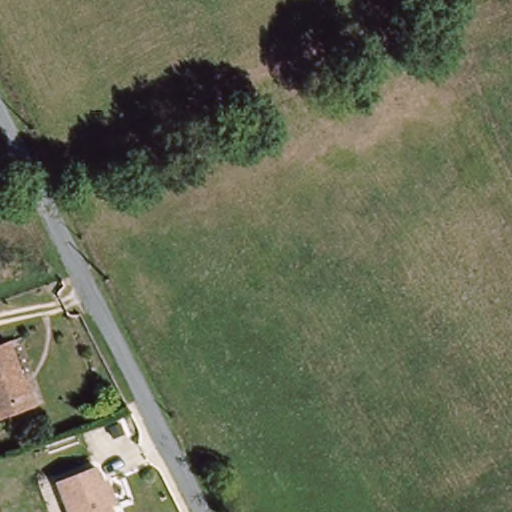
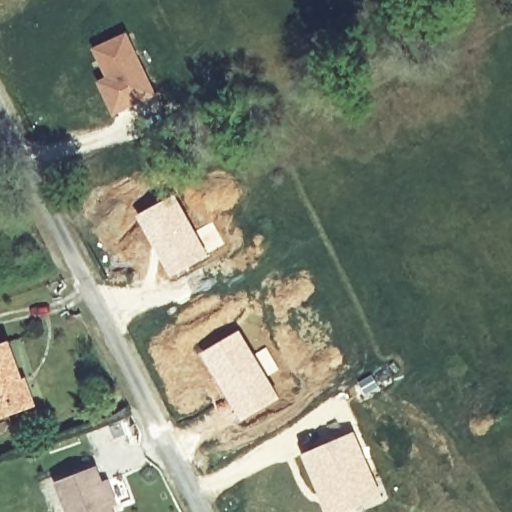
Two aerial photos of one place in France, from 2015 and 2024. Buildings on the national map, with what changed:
new [(128,31),(159,95),(112,118),(95,80),(104,76),(91,47),(128,31)]
new [(239,329),(254,353),(265,347),(279,370),(268,376),(280,397),(243,419),(201,352),(239,329)]
unchanged [(30,381),(34,379),(41,402),(0,415),(0,348),(17,343),(30,381)]
new [(355,431),(384,499),(355,512),(329,512),(302,453),(355,431)]
unchanged [(117,512),(73,512),(63,483),(101,469),(117,512)]

